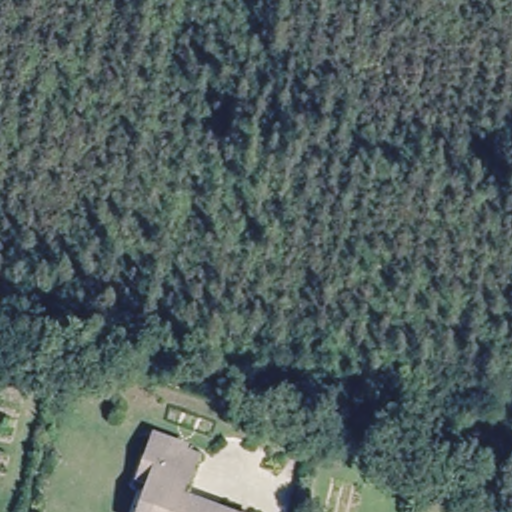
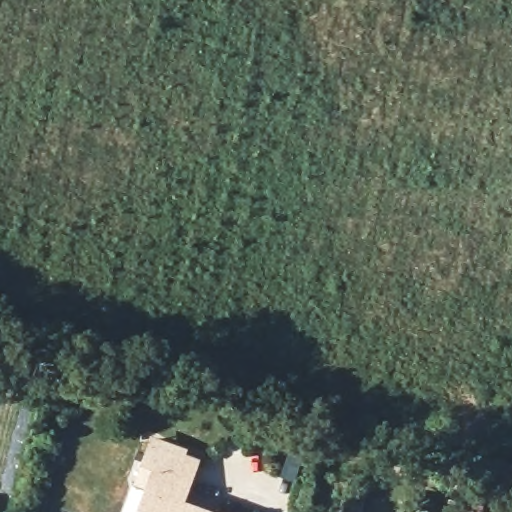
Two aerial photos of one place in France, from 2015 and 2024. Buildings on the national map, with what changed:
unchanged [(139,465),(145,447),(199,466),(185,508),(196,512),(137,512),(143,494),(130,489),(139,465)]

